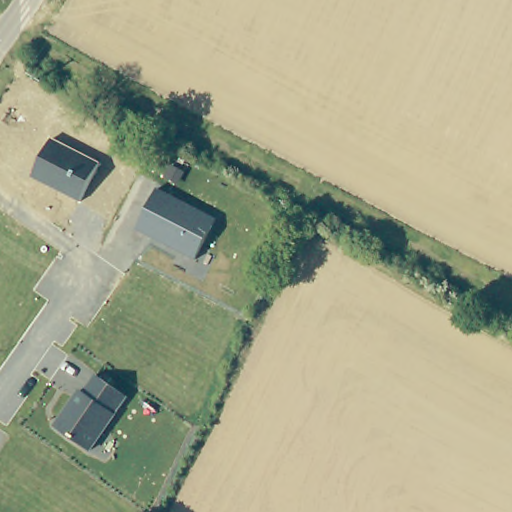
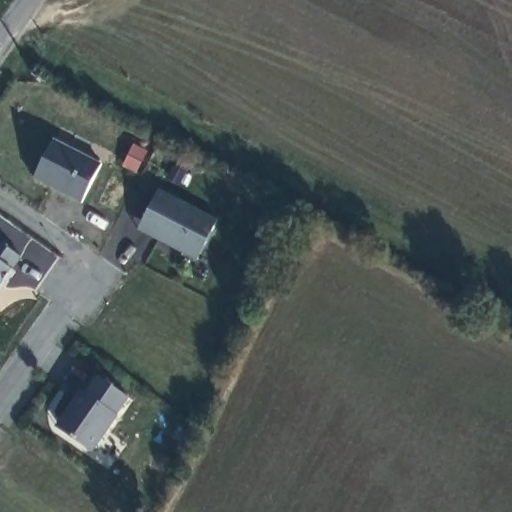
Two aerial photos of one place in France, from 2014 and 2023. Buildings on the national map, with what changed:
unchanged [(53,140),(101,165),(80,204),(33,178),(53,140)]
unchanged [(158,191),(215,221),(195,261),(137,231),(158,191)]
unchanged [(11,269),(0,285),(0,241),(21,256),(11,269)]
unchanged [(59,419),(81,388),(84,390),(96,373),(128,395),(90,449),(61,429),(55,425),(59,419)]

